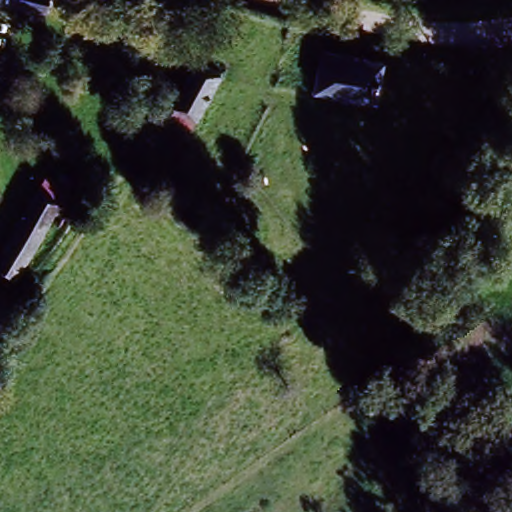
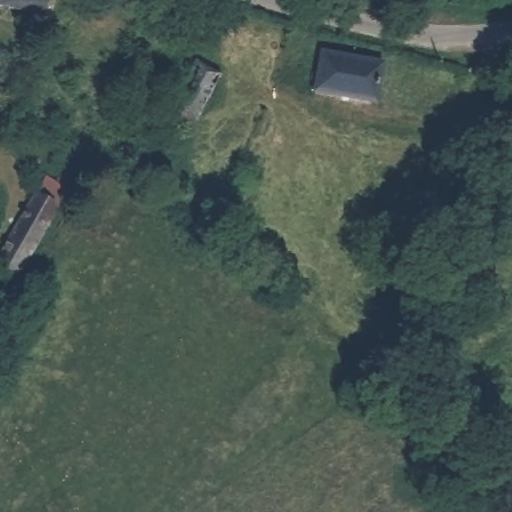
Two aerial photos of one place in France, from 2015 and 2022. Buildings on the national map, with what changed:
unchanged [(0,13),(0,0),(52,0),(46,24),(0,13)]
unchanged [(321,53),(385,64),(379,107),(314,96),(321,53)]
unchanged [(170,110),(200,57),(225,71),(195,124),(170,110)]
unchanged [(447,178),(430,172),(440,141),(457,147),(447,178)]
unchanged [(70,189),(15,283),(0,273),(0,249),(45,174),(70,189)]

